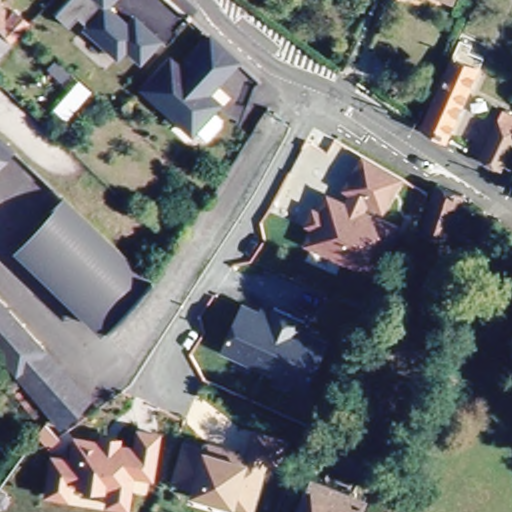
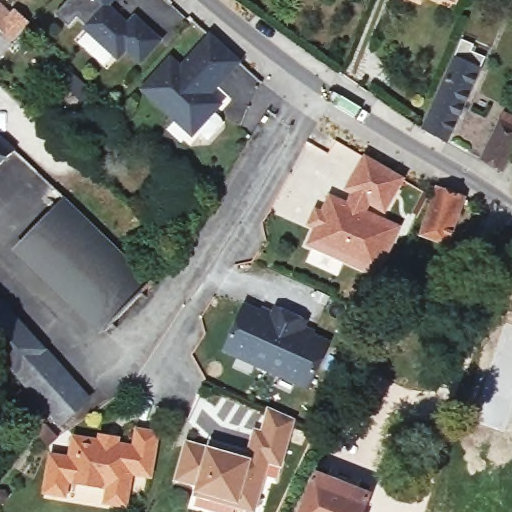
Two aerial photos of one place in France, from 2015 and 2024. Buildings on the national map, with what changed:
unchanged [(117,61),(82,31),(87,26),(78,15),(68,27),(54,14),(66,0),(119,0),(115,5),(129,20),(136,14),(165,39),(140,65),(126,52),(117,61)]
unchanged [(4,10),(9,6),(11,8),(22,19),(5,36),(8,39),(0,47),(0,6),(4,10)]
unchanged [(447,142),(425,130),(464,43),(466,38),(480,45),(477,54),(484,57),(447,142)]
unchanged [(211,114),(219,120),(220,128),(206,143),(194,132),(191,135),(143,90),(171,61),(181,70),(211,39),(238,64),(208,95),(219,105),(211,114)]
unchanged [(53,108),(66,91),(43,69),(56,56),(93,90),(65,119),(53,108)]
unchanged [(512,149),(502,169),(501,172),(481,160),(505,113),(512,116),(512,149)]
unchanged [(0,156),(0,135),(11,146),(0,156)]
unchanged [(376,278),(308,247),(316,230),(309,227),(315,213),(322,217),(330,199),(348,208),(354,195),(347,192),(365,160),(402,182),(383,214),(368,204),(363,215),(398,230),(376,278)]
unchanged [(463,199),(447,246),(419,235),(437,188),(463,199)]
unchanged [(149,279),(152,283),(106,329),(19,245),(64,198),(149,279)]
unchanged [(59,368),(82,394),(54,421),(53,423),(0,355),(0,301),(59,368)]
unchanged [(311,385),(305,388),(230,354),(227,347),(246,306),(273,318),(277,309),(307,323),(303,332),(330,344),(311,385)]
unchanged [(197,491),(199,487),(177,480),(186,445),(209,451),(210,446),(229,451),(249,456),(255,433),(263,436),(268,417),(292,428),(287,442),(279,466),(267,463),(257,497),(253,512),(251,512),(196,497),(197,491)]
unchanged [(105,503),(108,488),(67,481),(64,495),(44,492),(51,455),(70,459),(74,437),(82,439),(100,442),(101,436),(118,439),(117,445),(134,449),(138,431),(158,435),(150,477),(131,474),(129,482),(127,492),(125,507),(105,503)]
unchanged [(368,499),(362,512),(301,512),(316,476),(368,499)]

